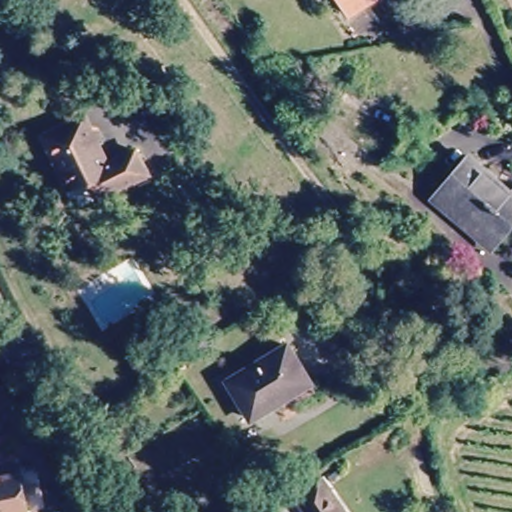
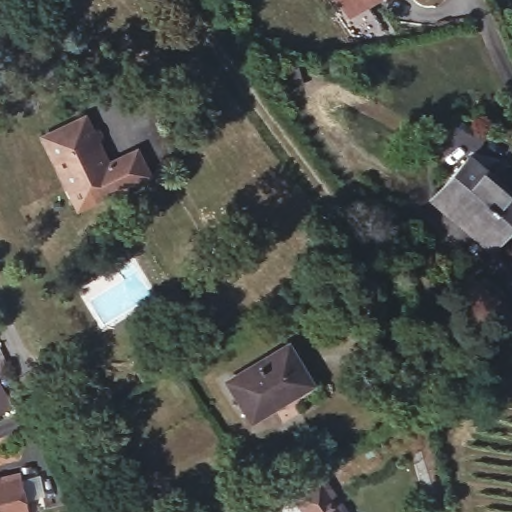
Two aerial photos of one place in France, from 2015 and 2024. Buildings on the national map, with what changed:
unchanged [(369,0),(353,11),(347,0),(369,0)]
unchanged [(78,180),(62,188),(39,135),(81,116),(102,164),(131,151),(142,175),(100,195),(87,201),(78,180)]
unchanged [(434,196),(467,156),(512,194),(512,220),(490,245),(434,196)]
unchanged [(227,382),(286,347),(315,394),(284,414),(279,404),(250,421),(227,382)]
unchanged [(0,413),(0,389),(11,405),(0,413)]
unchanged [(0,477),(17,473),(25,512),(0,512),(0,477)]
unchanged [(294,495),(324,477),(346,512),(304,512),(294,495)]

